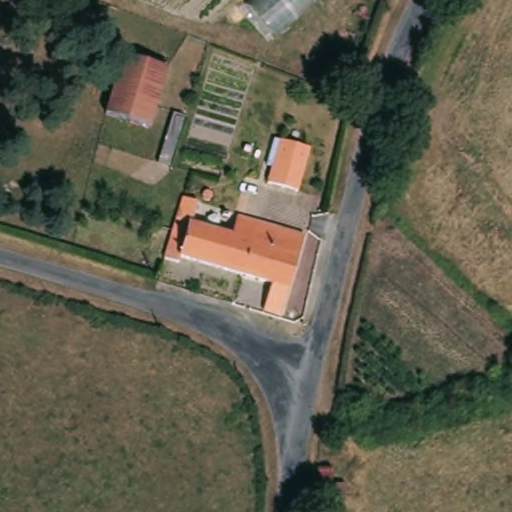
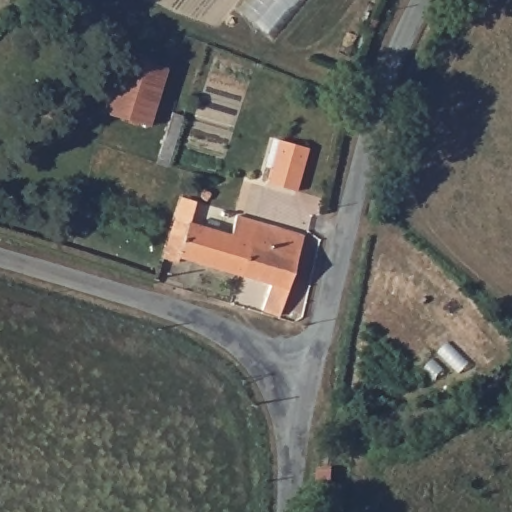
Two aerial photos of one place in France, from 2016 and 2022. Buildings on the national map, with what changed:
unchanged [(249,0),(320,0),(269,46),(238,9),(249,0)]
unchanged [(156,128),(104,112),(121,55),(168,69),(156,128)]
unchanged [(174,157),(164,154),(176,115),(188,117),(174,157)]
unchanged [(286,143),(316,149),(311,169),(305,192),(276,187),(282,163),(286,143)]
unchanged [(186,194),(200,200),(193,222),(235,235),(241,213),(307,234),(282,314),(266,308),(274,282),(182,254),(180,262),(165,257),(186,194)]
unchanged [(349,491),(316,488),(316,445),(348,447),(349,491)]

